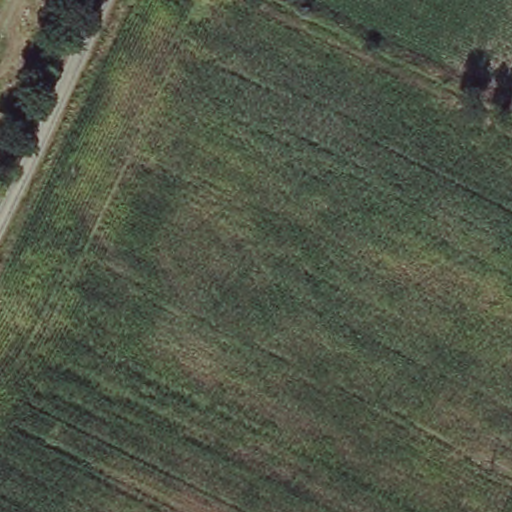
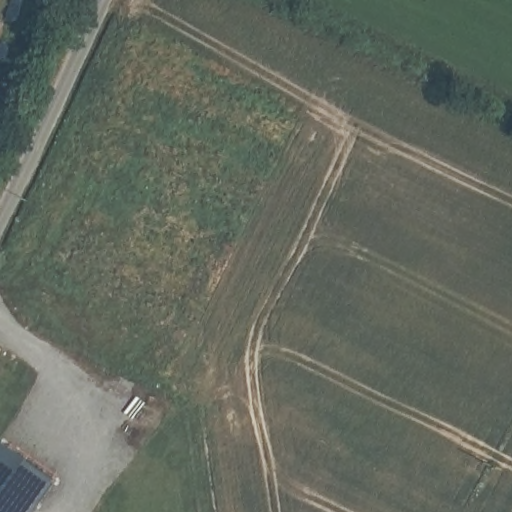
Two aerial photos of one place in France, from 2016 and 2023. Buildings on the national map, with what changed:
new [(31,512),(0,512),(0,452),(7,442),(57,476),(31,512)]

